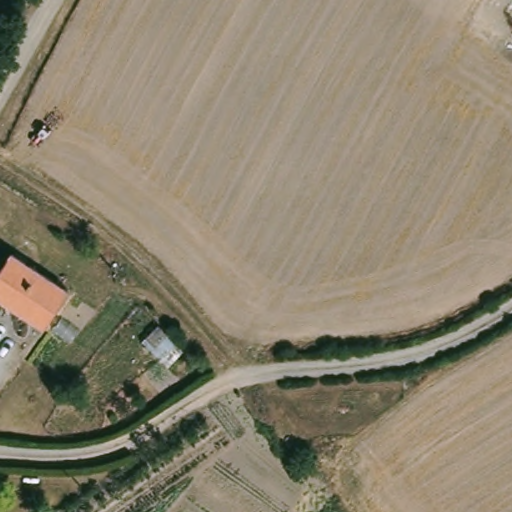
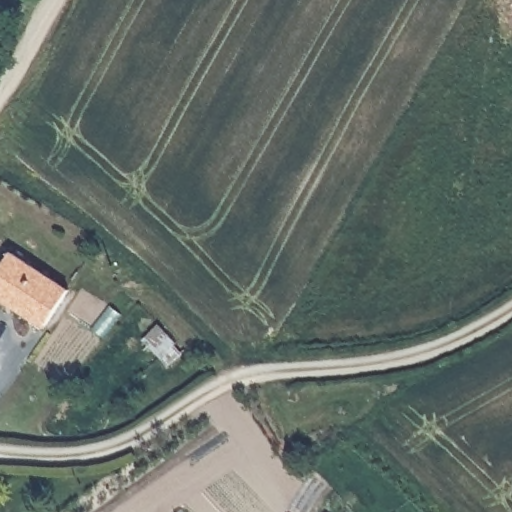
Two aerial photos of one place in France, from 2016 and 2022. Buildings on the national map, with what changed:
unchanged [(12,253),(69,290),(45,327),(0,297),(0,271),(12,253)]

